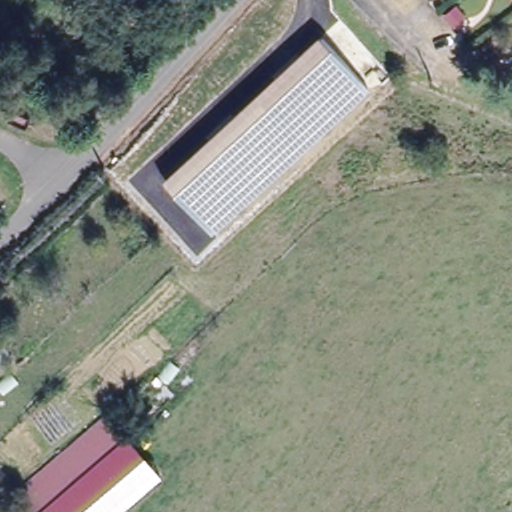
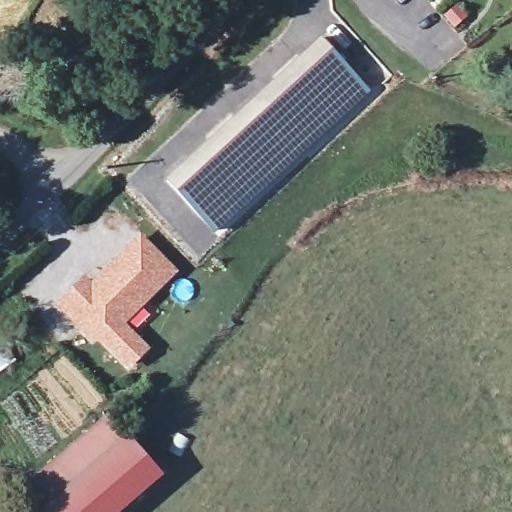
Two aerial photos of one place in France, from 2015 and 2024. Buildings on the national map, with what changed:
unchanged [(323,39),(370,91),(211,231),(165,179),(323,39)]
new [(179,271),(125,323),(150,348),(129,368),(98,338),(93,343),(55,305),(85,275),(91,281),(140,233),(179,271)]
unchanged [(44,512),(33,512),(18,496),(111,415),(131,438),(44,512)]
unchanged [(121,512),(44,512),(131,438),(163,476),(121,512)]

